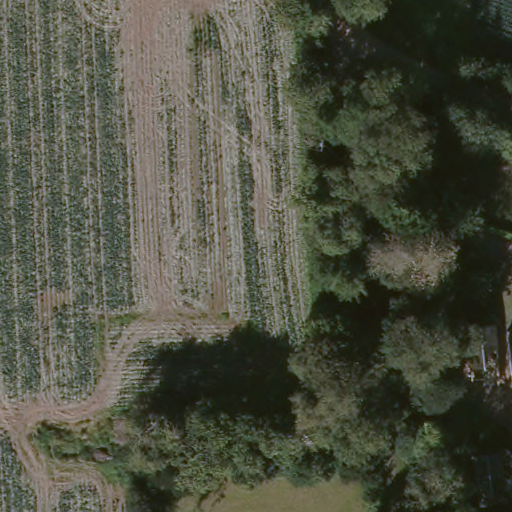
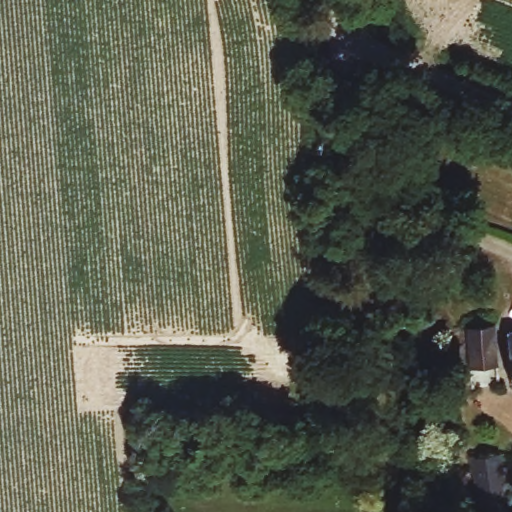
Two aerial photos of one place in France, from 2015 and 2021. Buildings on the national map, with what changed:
unchanged [(468,389),(464,327),(512,322),(512,385),(468,389)]
unchanged [(468,451),(496,448),(503,496),(474,499),(468,451)]

